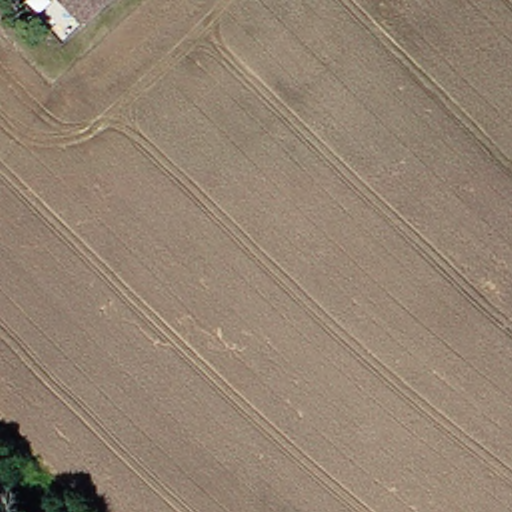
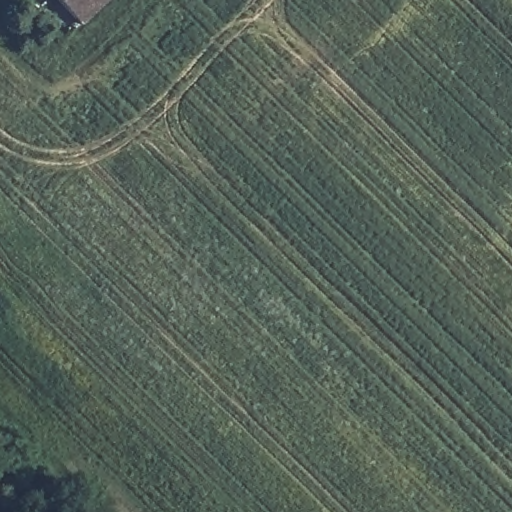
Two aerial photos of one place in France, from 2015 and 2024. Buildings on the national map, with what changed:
unchanged [(104,0),(77,26),(54,0),(104,0)]

